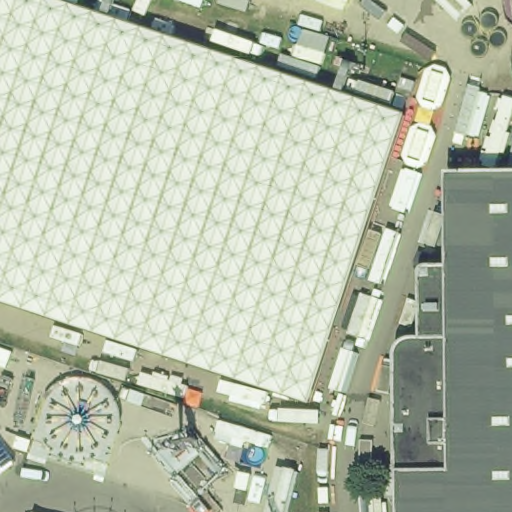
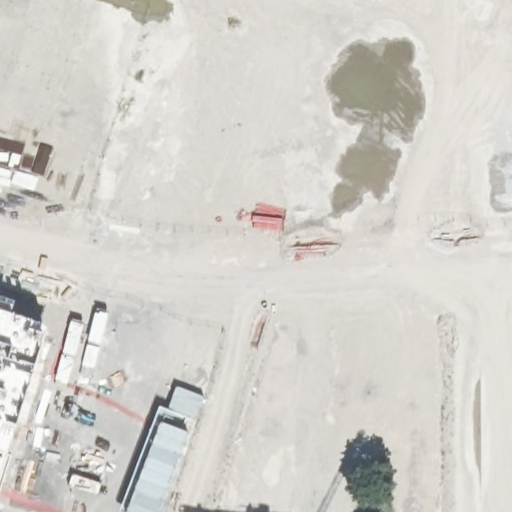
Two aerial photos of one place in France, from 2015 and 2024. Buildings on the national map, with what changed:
demolished [(0,300),(0,0),(57,0),(405,112),(309,401),(0,300)]
demolished [(399,352),(403,344),(409,340),(415,339),(424,338),(423,267),(450,267),(450,174),(487,172),(512,172),(512,512),(400,512),(399,440),(399,365),(399,352)]
new [(18,306),(15,317),(46,327),(0,482),(0,299),(18,306)]

